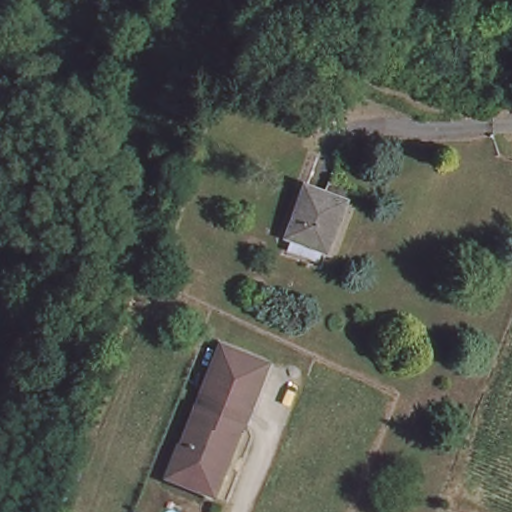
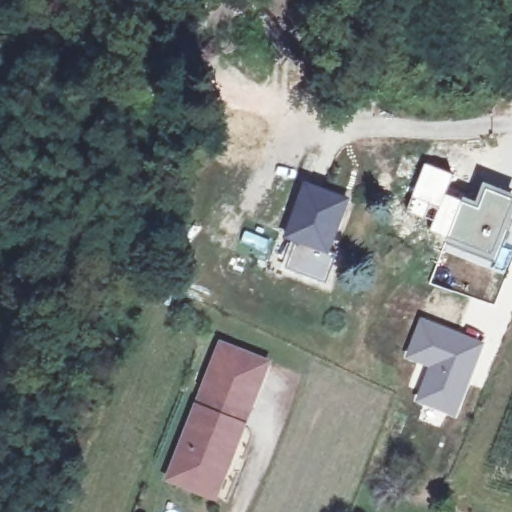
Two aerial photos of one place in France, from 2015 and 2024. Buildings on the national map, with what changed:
new [(429,230),(438,206),(430,203),(425,215),(406,209),(424,161),(453,172),(446,191),(462,196),(475,200),(482,180),(512,191),(512,205),(496,256),(491,268),(441,249),(446,236),(429,230)]
unchanged [(285,251),(290,236),(288,235),(310,179),(354,196),(332,252),(327,250),(322,264),(285,251)]
new [(419,315),(485,339),(456,417),(414,400),(427,366),(404,357),(419,315)]
unchanged [(227,345),(271,363),(254,407),(209,389),(227,345)]
unchanged [(209,389),(254,407),(245,429),(200,411),(209,389)]
unchanged [(245,429),(237,447),(234,446),(222,475),(225,477),(217,496),(173,478),(200,411),(245,429)]

